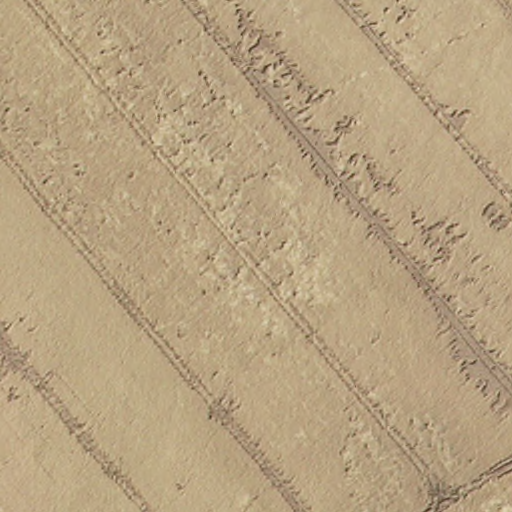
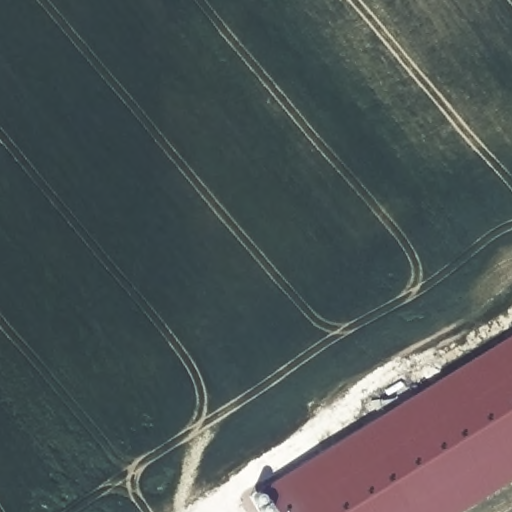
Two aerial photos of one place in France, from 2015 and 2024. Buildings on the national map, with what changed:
new [(512,468),(440,512),(286,512),(270,487),(512,339),(512,468)]

